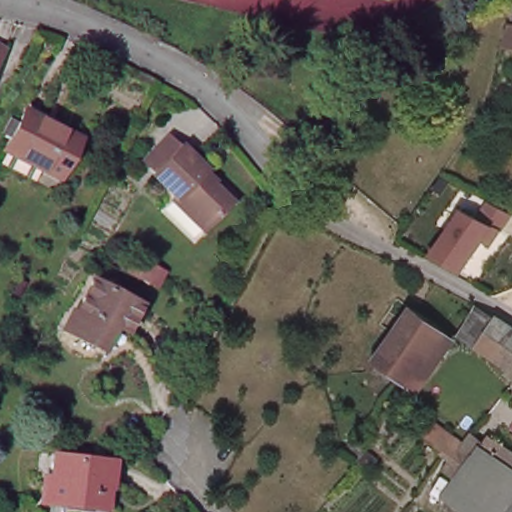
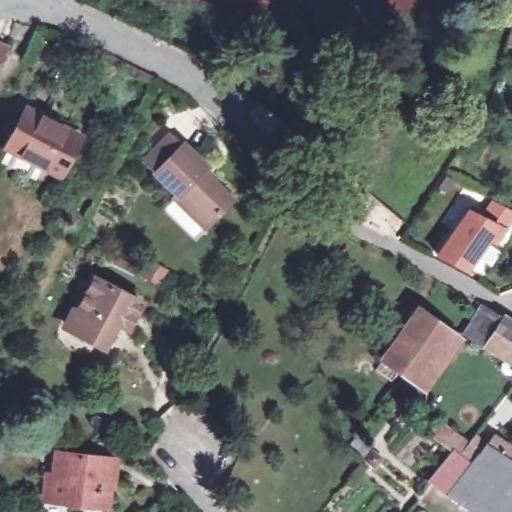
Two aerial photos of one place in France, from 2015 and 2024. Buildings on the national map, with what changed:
unchanged [(0,67),(0,41),(10,46),(0,67)]
unchanged [(10,164),(15,152),(23,139),(17,135),(23,121),(30,125),(36,113),(90,141),(70,181),(53,172),(47,184),(10,164)]
unchanged [(212,171),(208,175),(237,204),(210,232),(180,203),(183,200),(160,176),(165,171),(154,160),(173,142),(184,152),(188,149),(212,171)]
unchanged [(512,212),(512,220),(496,245),(490,240),(467,274),(435,257),(467,210),(480,218),(490,203),(512,212)]
unchanged [(74,330),(100,279),(147,303),(133,330),(122,323),(108,347),(74,330)]
unchanged [(474,338),(492,310),(512,322),(512,363),(474,338)]
unchanged [(393,365),(428,313),(462,335),(425,387),(393,365)]
unchanged [(462,490),(468,481),(458,473),(465,464),(455,456),(458,451),(437,438),(447,425),(478,445),(483,439),(512,458),(512,512),(471,512),(455,501),(462,490)]
unchanged [(118,490),(110,488),(107,511),(53,505),(56,481),(58,482),(62,459),(70,460),(120,465),(118,490)]

